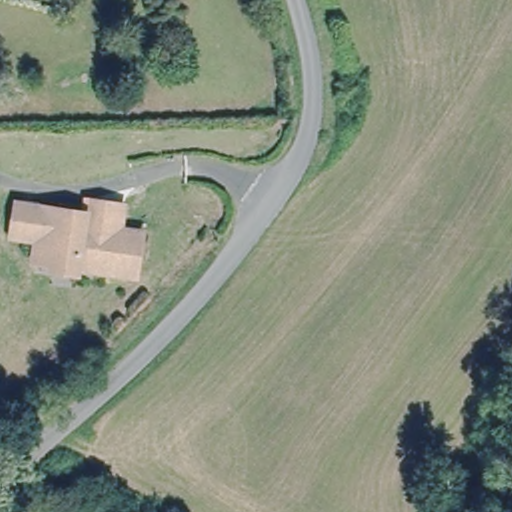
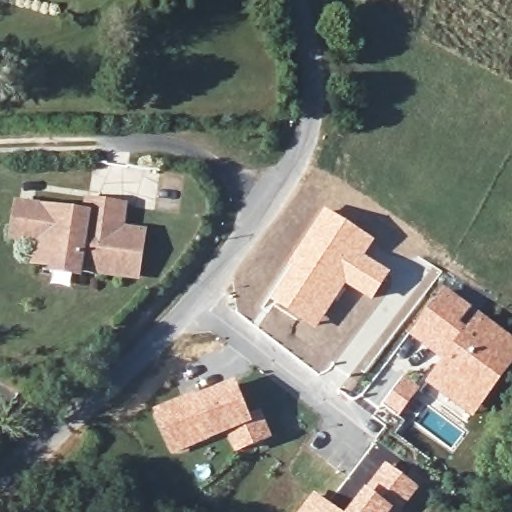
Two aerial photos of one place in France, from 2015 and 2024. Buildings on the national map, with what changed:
unchanged [(45,247),(17,243),(22,210),(92,220),(94,208),(129,213),(125,235),(148,239),(141,284),(57,272),(41,269),(45,247)]
new [(281,279),(301,244),(325,208),(375,242),(365,256),(390,273),(371,302),(345,286),(315,330),(267,299),(281,279)]
new [(443,286),(478,311),(512,338),(512,368),(472,419),(425,382),(440,360),(408,334),(443,286)]
new [(404,376),(420,389),(399,417),(382,404),(404,376)]
new [(165,431),(156,409),(182,399),(191,395),(194,400),(232,384),(246,420),(257,416),(266,438),(236,449),(228,428),(185,446),(172,450),(165,431)]
new [(385,462),(420,488),(401,512),(397,512),(395,511),(393,512),(345,512),(385,462)]
new [(313,491),(342,512),(297,512),(313,491)]

